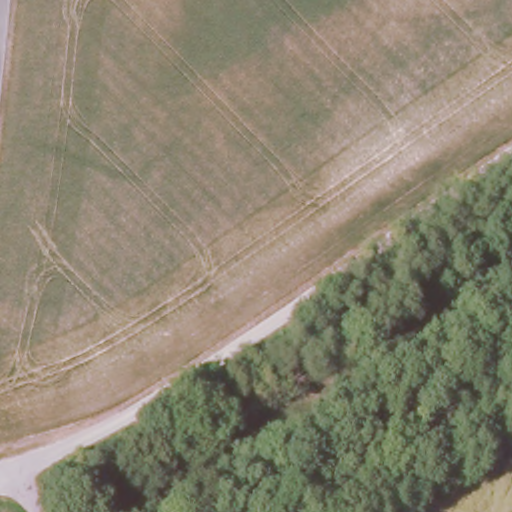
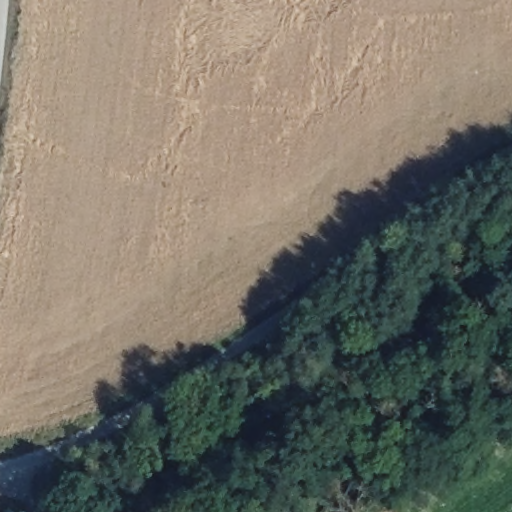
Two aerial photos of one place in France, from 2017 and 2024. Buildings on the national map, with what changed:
unchanged [(399,436),(405,446),(382,460),(377,450),(399,436)]

